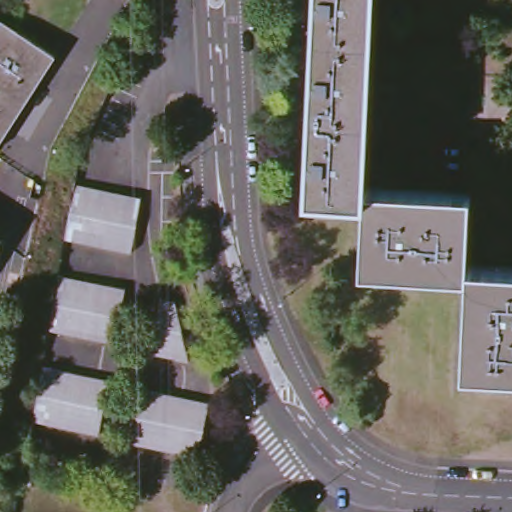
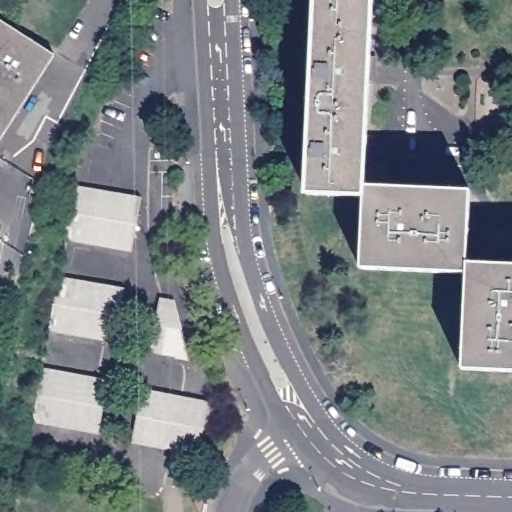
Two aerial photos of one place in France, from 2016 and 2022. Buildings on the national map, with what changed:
unchanged [(360,268),(364,194),(306,191),(316,0),(372,0),(364,185),(471,192),(467,263),(512,266),(512,372),(463,369),(467,273),(360,268)]
unchanged [(53,56),(0,139),(0,24),(1,22),(53,56)]
unchanged [(61,236),(70,181),(138,191),(129,247),(61,236)]
unchanged [(0,245),(0,242),(1,243),(0,245)]
unchanged [(47,328),(55,272),(123,283),(115,338),(47,328)]
unchanged [(163,357),(171,302),(186,304),(203,363),(163,357)]
unchanged [(28,425),(32,396),(36,369),(104,380),(95,435),(28,425)]
unchanged [(133,444),(142,388),(209,399),(201,454),(133,444)]

